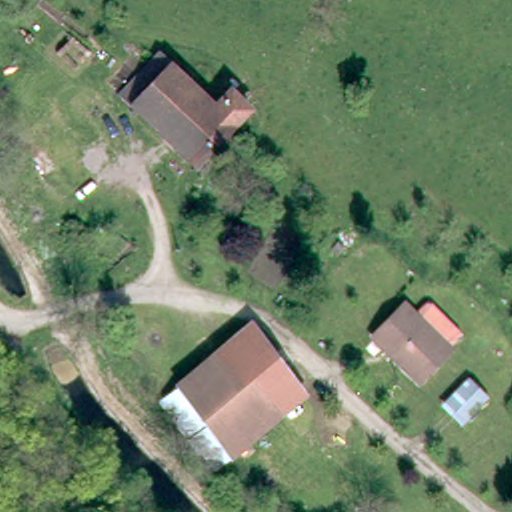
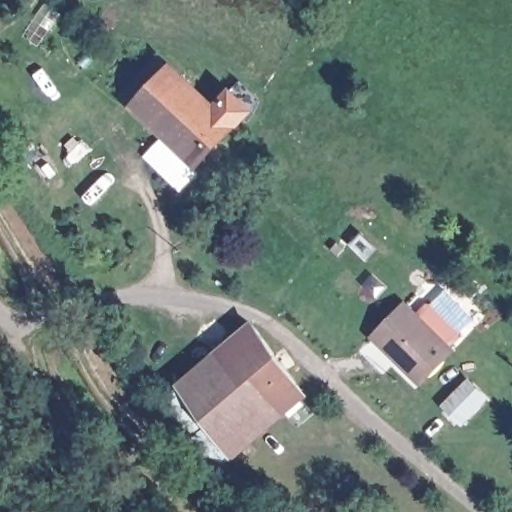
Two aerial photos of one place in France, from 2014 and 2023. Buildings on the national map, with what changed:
unchanged [(172,64),(215,105),(231,89),(250,108),(197,165),(134,104),(172,64)]
unchanged [(452,344),(422,378),(372,334),(402,300),(452,344)]
unchanged [(225,459),(167,392),(257,316),(310,384),(225,459)]
unchanged [(494,404),(468,429),(452,415),(479,389),(494,404)]

